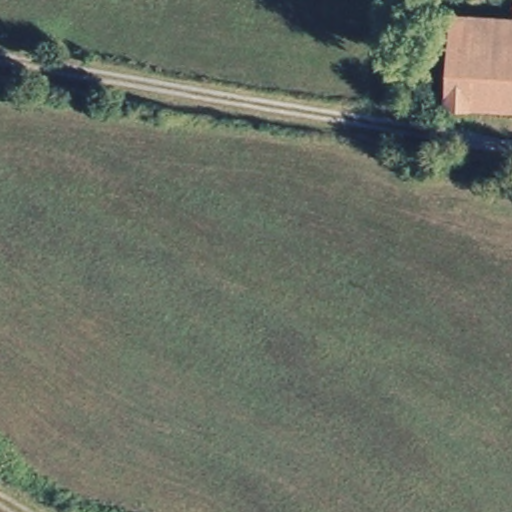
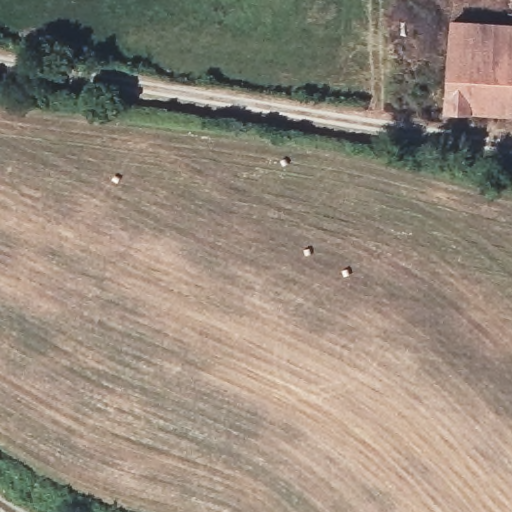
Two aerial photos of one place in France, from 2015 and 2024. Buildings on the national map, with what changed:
unchanged [(455,32),(456,21),(512,24),(512,79),(455,76),(455,32)]
unchanged [(512,110),(454,108),(455,76),(512,79),(512,110)]

